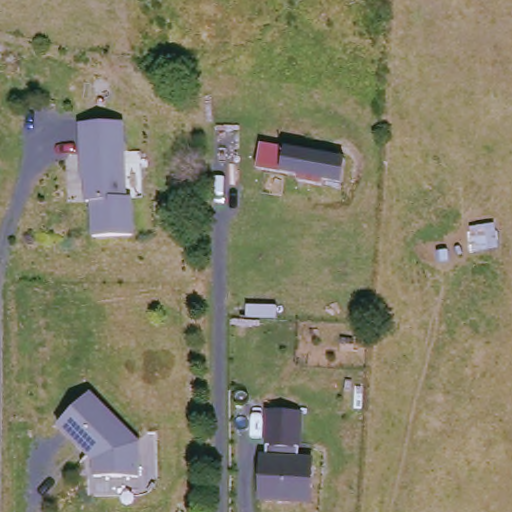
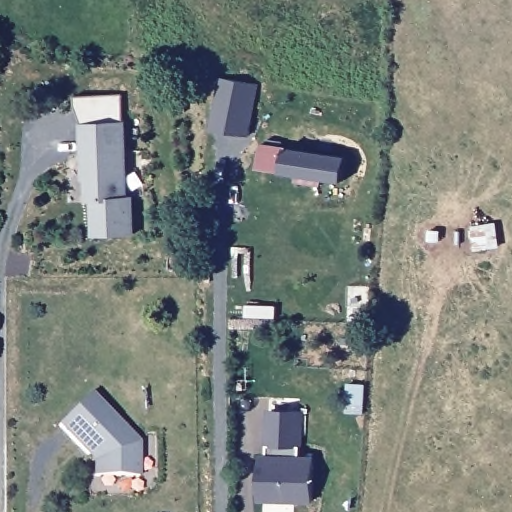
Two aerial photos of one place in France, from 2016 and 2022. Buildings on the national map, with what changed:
new [(255,85),(247,136),(210,130),(219,79),(255,85)]
unchanged [(87,200),(87,177),(90,176),(90,169),(86,169),(87,151),(82,151),(82,120),(124,119),(126,195),(132,194),(133,233),(95,235),(93,200),(87,200)]
unchanged [(282,175),(257,169),(262,145),(287,150),(347,159),(342,185),(282,175)]
unchanged [(94,455),(92,456),(61,425),(91,393),(141,443),(141,476),(97,476),(97,458),(94,455)]
unchanged [(262,456),(269,456),(270,410),(304,412),(302,458),(317,460),(315,505),(262,503),(262,456)]

